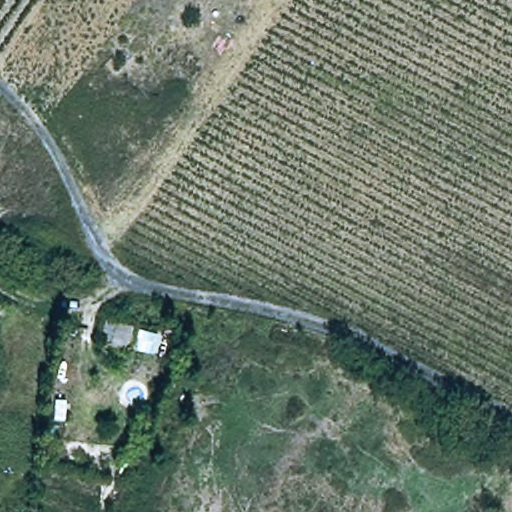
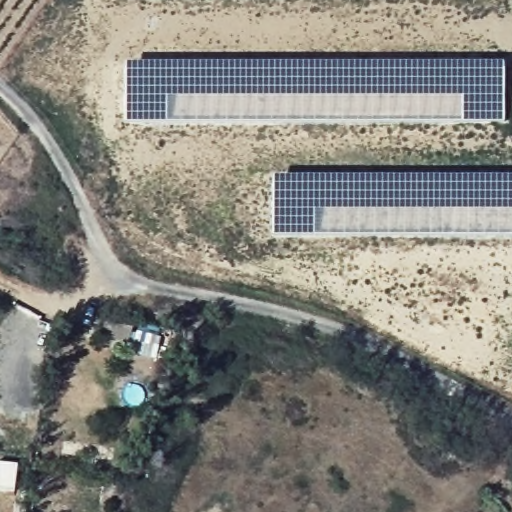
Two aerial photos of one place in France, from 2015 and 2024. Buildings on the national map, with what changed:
new [(160,60),(505,61),(506,122),(449,123),(318,121),(187,123),(125,123),(125,64),(160,60)]
new [(272,177),(405,175),(512,175),(512,236),(462,236),(390,235),(272,236),(272,177)]
unchanged [(100,327),(130,330),(129,335),(152,338),(150,360),(97,353),(100,327)]

